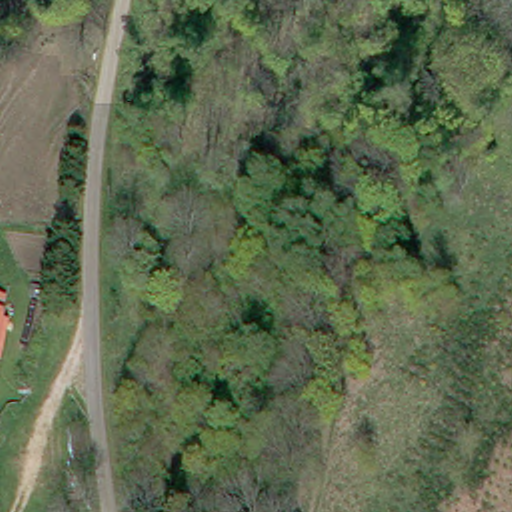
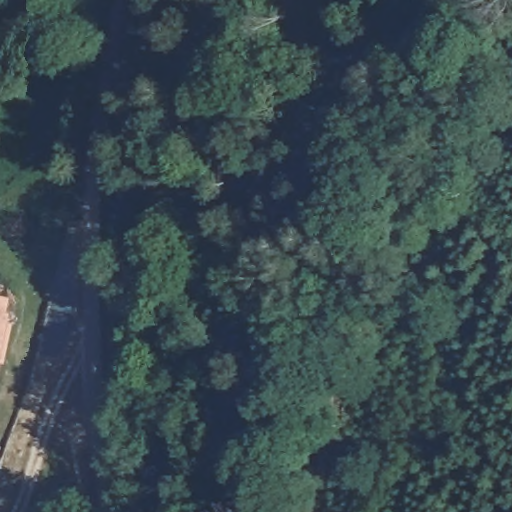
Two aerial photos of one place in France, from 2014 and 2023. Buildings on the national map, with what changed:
unchanged [(5,300),(3,310),(0,332),(0,299),(5,300)]

